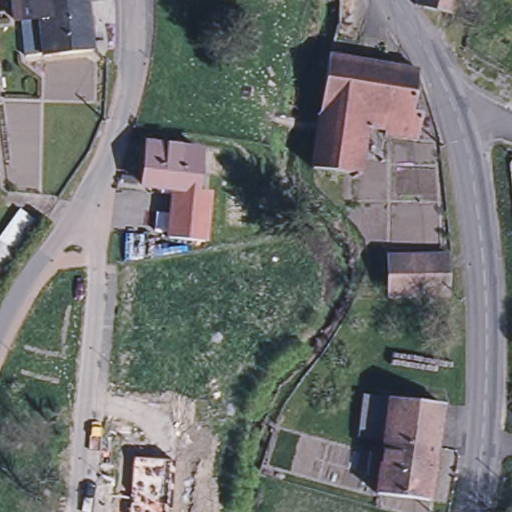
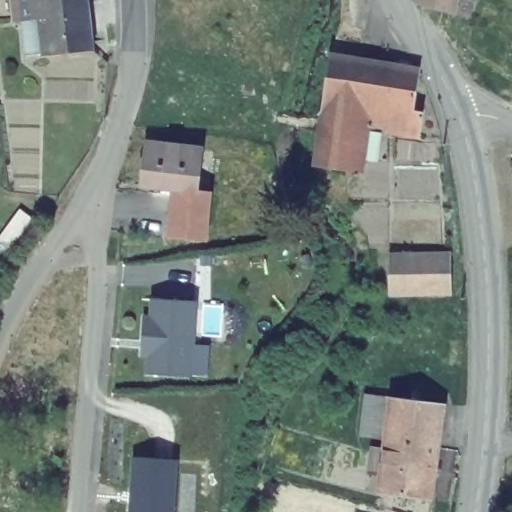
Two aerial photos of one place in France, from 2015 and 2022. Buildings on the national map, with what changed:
unchanged [(45,23),(45,18),(21,21),(19,0),(93,0),(95,18),(45,23)]
unchanged [(471,14),(455,9),(422,0),(471,0),(475,2),(471,14)]
unchanged [(95,18),(99,50),(49,55),(45,23),(95,18)]
unchanged [(375,61),(368,107),(372,108),(370,124),(322,114),(330,53),(375,61)]
unchanged [(375,61),(420,69),(415,112),(422,113),(420,138),(386,133),(387,127),(370,124),(372,108),(368,107),(375,61)]
unchanged [(370,124),(362,174),(315,165),(322,114),(370,124)]
unchanged [(205,241),(168,238),(174,195),(161,193),(162,187),(142,184),(147,143),(201,149),(197,189),(210,192),(205,241)]
unchanged [(19,209),(38,223),(26,240),(0,278),(0,237),(19,209)]
unchanged [(450,254),(451,294),(390,293),(388,254),(450,254)]
new [(193,377),(145,374),(147,357),(140,357),(142,315),(150,315),(150,298),(196,301),(193,377)]
unchanged [(363,398),(390,401),(385,441),(381,474),(367,473),(370,442),(358,440),(363,398)]
unchanged [(443,407),(438,448),(385,441),(390,401),(443,407)]
unchanged [(438,448),(430,504),(379,496),(381,474),(385,441),(438,448)]
new [(177,461),(173,512),(128,512),(131,458),(177,461)]

